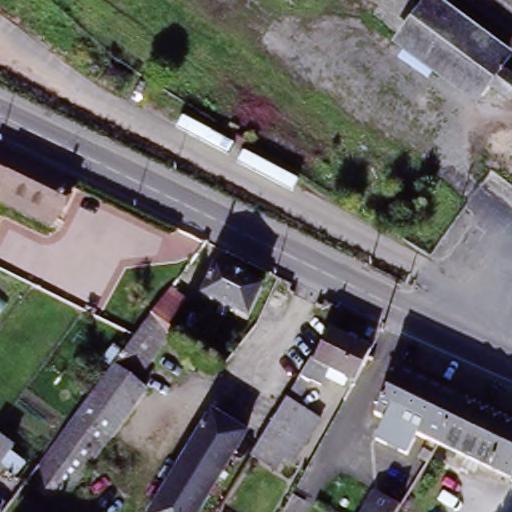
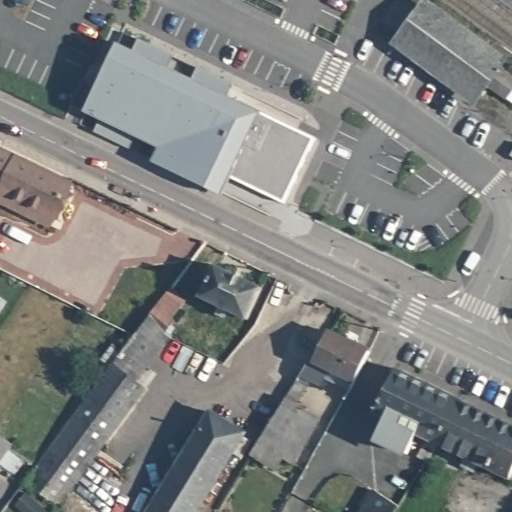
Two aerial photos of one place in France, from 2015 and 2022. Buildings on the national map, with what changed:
unchanged [(490,83),(480,95),(398,35),(419,6),(501,67),(512,76),(512,85),(505,95),(490,83)]
new [(216,191),(170,169),(175,156),(148,144),(142,155),(107,139),(113,126),(97,119),(125,62),(141,70),(146,58),(182,75),(176,87),(200,99),(205,86),(240,104),(235,115),(310,152),(283,205),(242,185),(235,201),(216,191)]
unchanged [(0,209),(0,142),(72,177),(56,210),(47,230),(1,207),(0,209)]
unchanged [(201,297),(216,265),(263,287),(248,319),(228,310),(225,317),(216,313),(220,305),(201,297)]
unchanged [(158,302),(168,289),(185,301),(175,315),(179,318),(170,331),(146,365),(125,348),(135,333),(147,316),(158,302)]
unchanged [(358,354),(343,382),(333,376),(305,361),(319,332),(348,347),(358,353),(358,354)]
unchanged [(146,365),(157,373),(76,482),(61,501),(28,477),(125,348),(146,365)]
unchanged [(435,440),(425,456),(416,451),(424,435),(371,408),(392,363),(457,395),(435,440)]
unchanged [(288,382),(296,387),(285,405),(308,420),(280,462),(249,442),(277,399),(288,382)]
unchanged [(512,465),(507,475),(435,440),(457,395),(512,422),(512,465)]
unchanged [(145,512),(209,412),(243,433),(193,512),(145,512)]
unchanged [(15,445),(0,463),(0,433),(15,445)]
unchanged [(397,504),(392,512),(356,512),(371,487),(397,504)]

